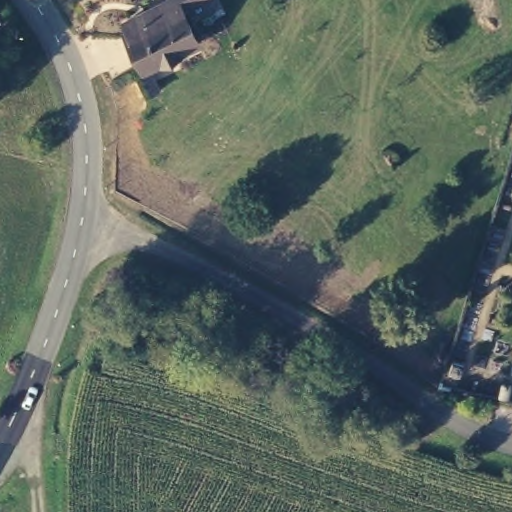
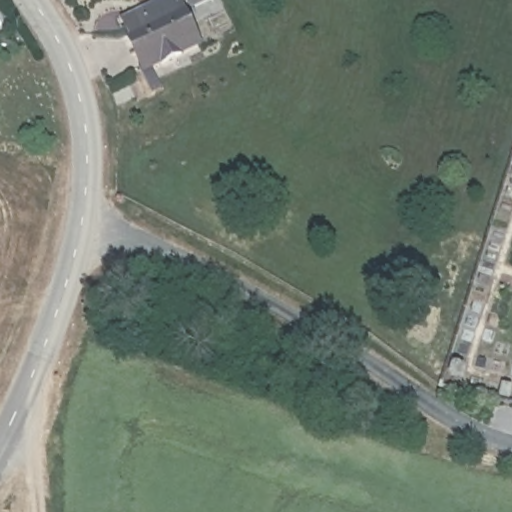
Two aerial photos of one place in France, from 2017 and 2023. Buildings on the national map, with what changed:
unchanged [(164,0),(195,0),(183,7),(202,41),(185,50),(187,52),(169,63),(167,60),(151,69),(125,22),(164,0)]

